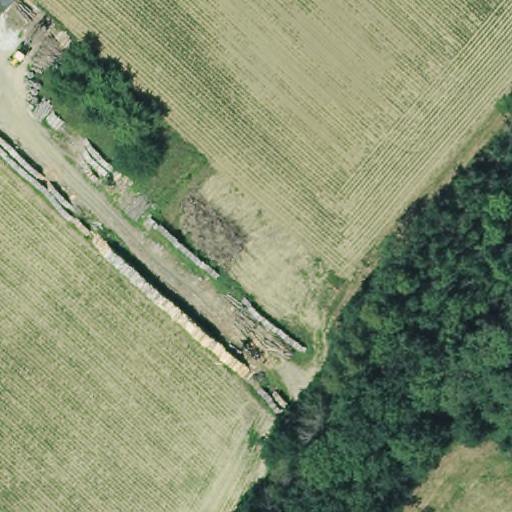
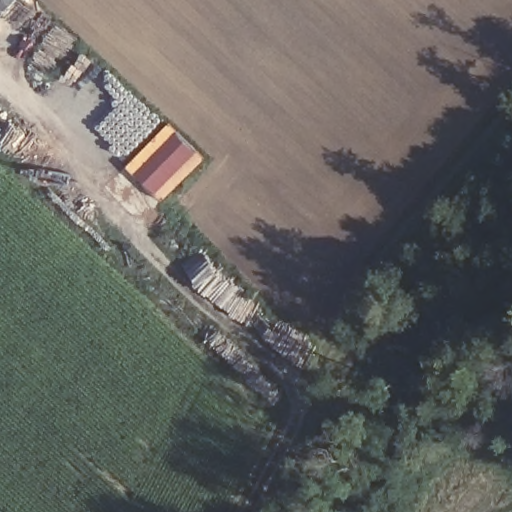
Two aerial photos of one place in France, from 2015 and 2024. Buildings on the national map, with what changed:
unchanged [(22,20),(10,6),(0,16),(0,0),(38,0),(22,20)]
new [(165,125),(202,162),(157,204),(122,168),(165,125)]

